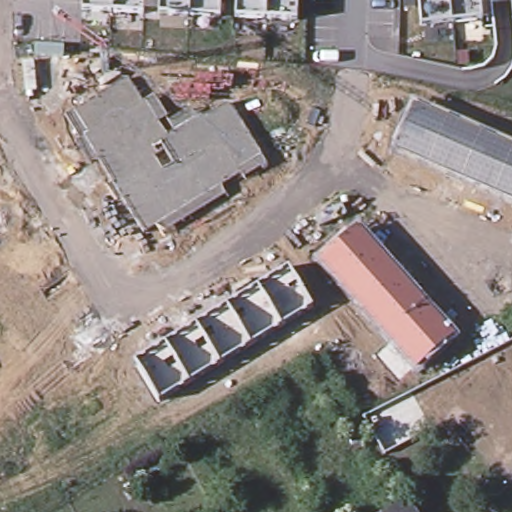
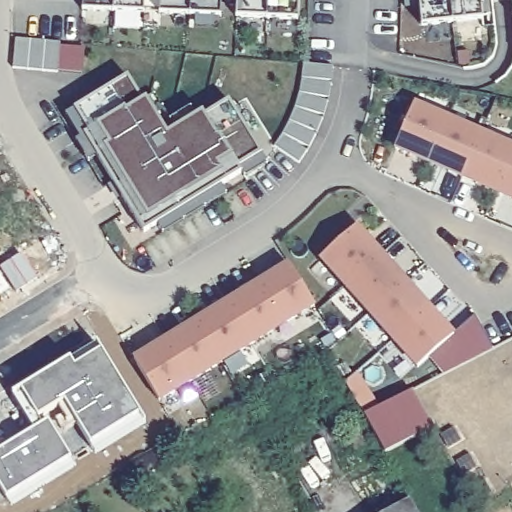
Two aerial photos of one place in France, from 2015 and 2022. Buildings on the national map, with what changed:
unchanged [(81,11),(81,0),(145,0),(145,16),(81,11)]
unchanged [(160,18),(160,0),(222,0),(221,19),(160,18)]
unchanged [(235,20),(236,0),(300,0),(300,21),(235,20)]
unchanged [(422,26),(420,0),(481,0),(483,21),(422,26)]
unchanged [(269,164),(242,179),(239,177),(222,186),(226,195),(162,235),(156,226),(144,234),(123,201),(117,204),(105,186),(113,182),(98,159),(90,164),(75,140),(79,137),(65,115),(126,76),(143,101),(155,95),(171,119),(191,108),(196,117),(202,114),(203,116),(228,102),(269,164)]
unchanged [(512,139),(512,202),(387,151),(413,97),(512,139)]
unchanged [(459,333),(419,371),(315,258),(358,221),(459,333)]
unchanged [(313,307),(157,403),(133,361),(288,265),(313,307)]
new [(98,338),(140,408),(91,437),(65,396),(30,417),(12,388),(98,338)]
new [(411,390),(431,427),(385,449),(365,413),(411,390)]
new [(71,455),(6,495),(0,485),(0,445),(48,420),(71,455)]
unchanged [(410,500),(417,512),(389,512),(410,500)]

